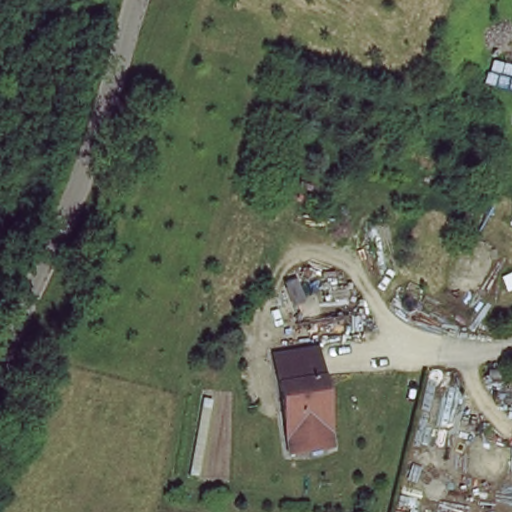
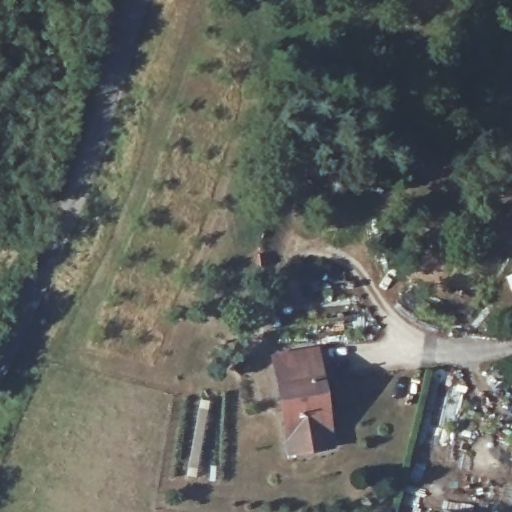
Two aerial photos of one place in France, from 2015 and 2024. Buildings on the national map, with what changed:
unchanged [(290,452),(287,436),(275,359),(318,353),(329,430),(332,447),(290,452)]

